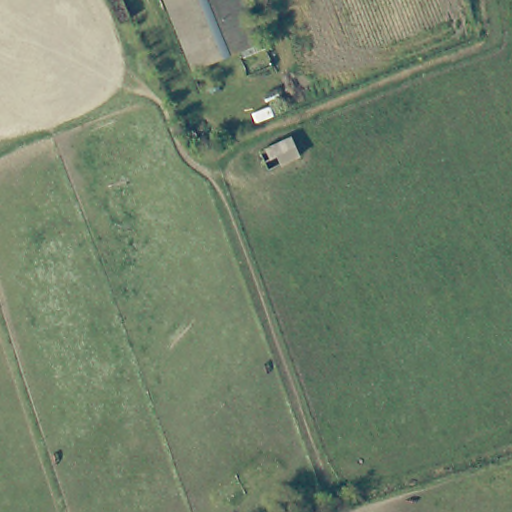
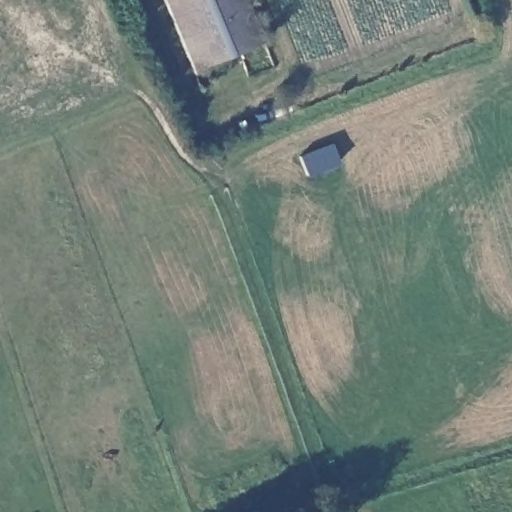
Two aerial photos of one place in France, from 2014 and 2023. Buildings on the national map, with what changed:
unchanged [(247,0),(263,42),(191,69),(164,0),(247,0)]
new [(300,159),(335,143),(340,154),(308,175),(300,159)]

